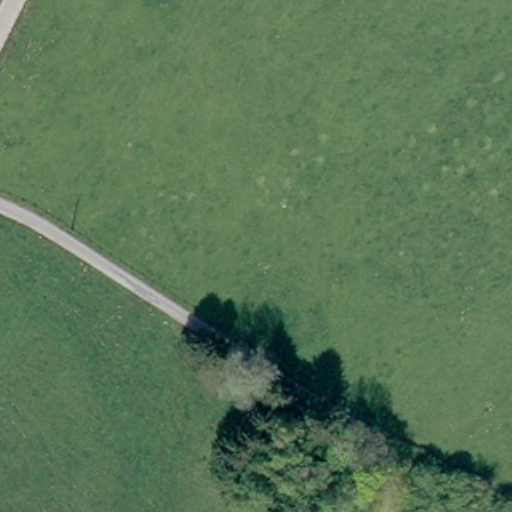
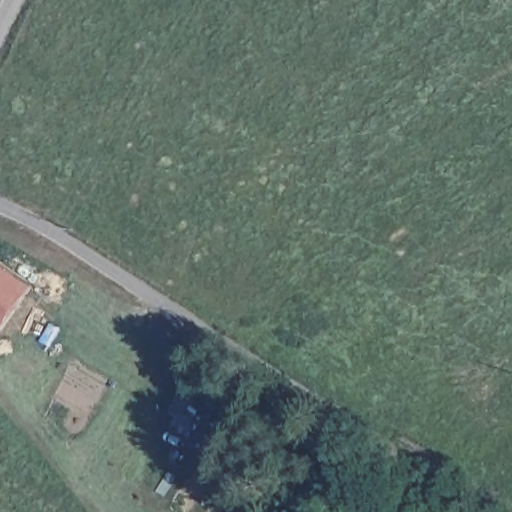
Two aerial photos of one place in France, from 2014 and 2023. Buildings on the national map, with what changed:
new [(0,329),(0,268),(29,288),(0,329)]

